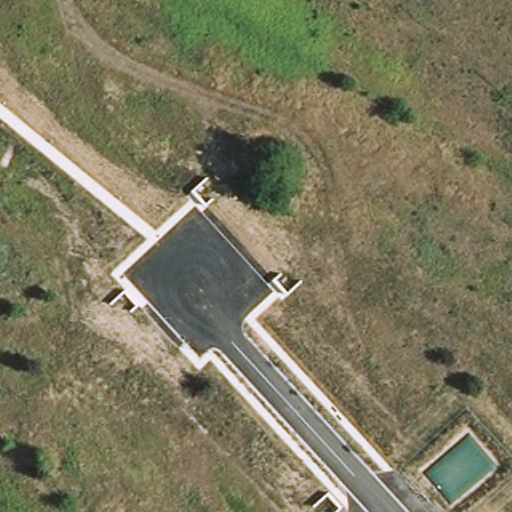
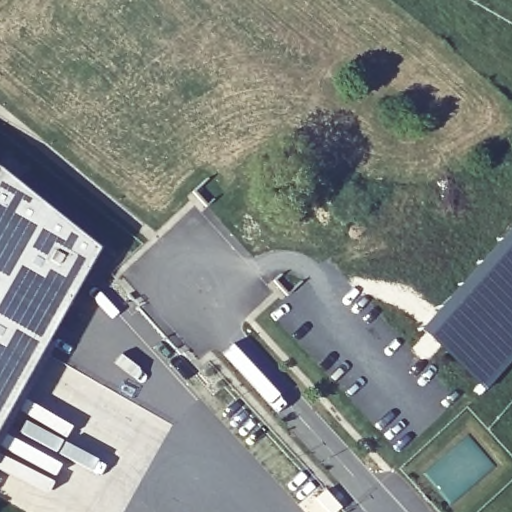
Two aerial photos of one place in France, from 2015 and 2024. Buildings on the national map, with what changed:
new [(96,250),(0,419),(0,174),(96,250)]
new [(512,222),(512,359),(485,389),(418,328),(481,255),(512,222)]

